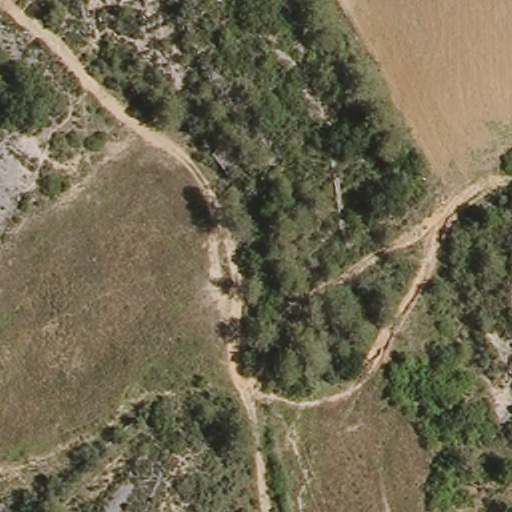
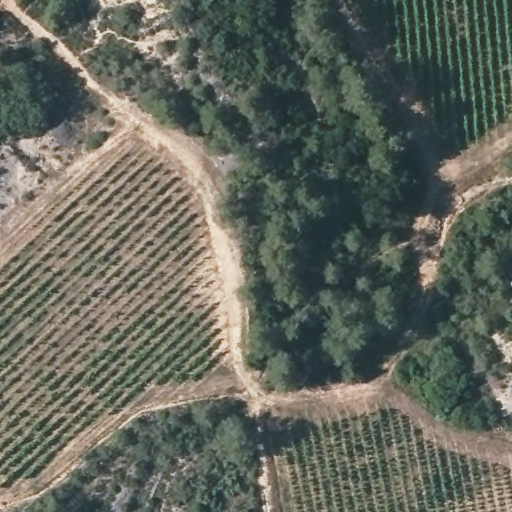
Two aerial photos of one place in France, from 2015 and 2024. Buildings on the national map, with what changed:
unchanged [(244,158),(238,166),(228,173),(211,155),(217,150),(228,141),(244,158)]

